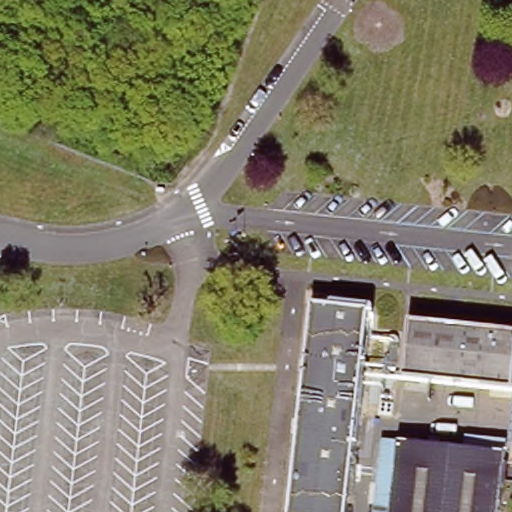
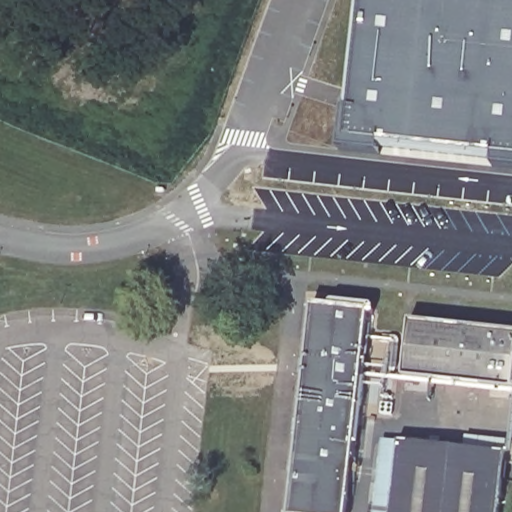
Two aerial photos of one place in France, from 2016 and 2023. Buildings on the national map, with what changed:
new [(512,162),(339,143),(355,0),(512,0),(512,162)]
unchanged [(291,512),(286,511),(311,296),(368,302),(344,512),(291,512)]
unchanged [(409,321),(512,332),(512,390),(404,378),(409,321)]
unchanged [(434,446),(436,439),(445,440),(446,447),(471,450),(471,441),(510,445),(509,454),(503,512),(394,512),(402,443),(434,446)]
unchanged [(402,443),(394,512),(378,512),(386,441),(402,443)]

